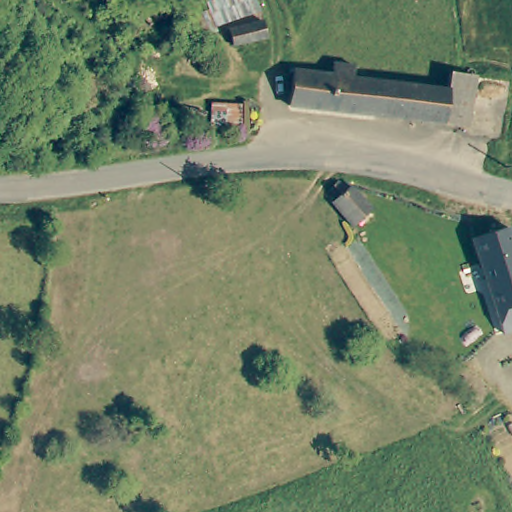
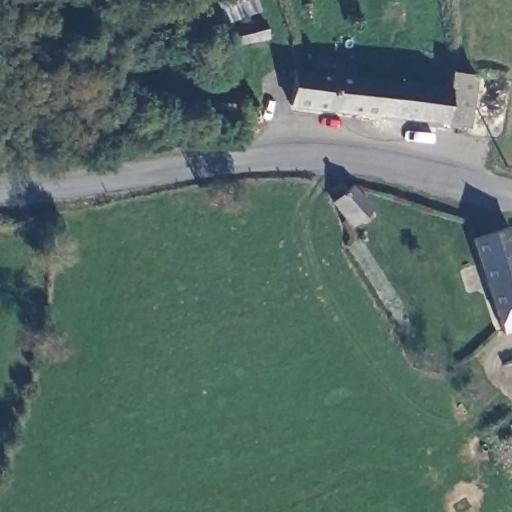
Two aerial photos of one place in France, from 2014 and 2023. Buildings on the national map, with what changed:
unchanged [(207,0),(256,0),(259,10),(215,25),(207,0)]
unchanged [(269,32),(235,45),(228,27),(261,16),(264,16),(269,32)]
unchanged [(473,121),(292,107),(295,70),(335,73),(336,60),(358,61),(358,75),(449,82),(449,67),(478,71),(477,76),(473,121)]
unchanged [(344,191),(351,187),(373,214),(351,232),(332,206),(335,203),(327,190),(338,182),(344,191)]
unchanged [(495,307),(492,308),(472,234),(508,225),(512,237),(512,327),(502,330),(495,307)]

